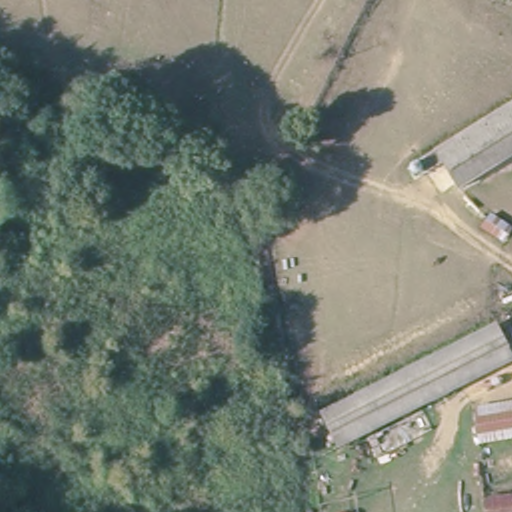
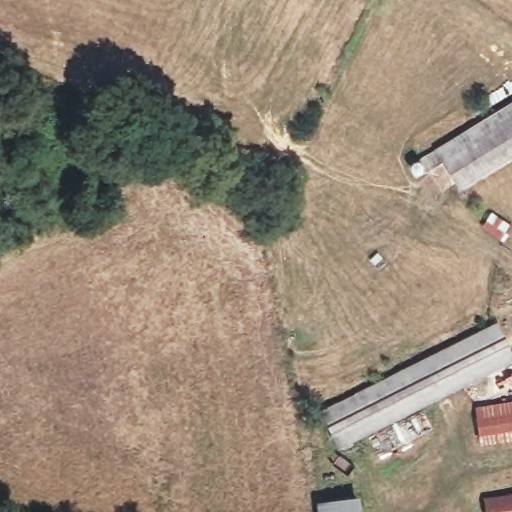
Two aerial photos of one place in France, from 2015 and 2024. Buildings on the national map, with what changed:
unchanged [(512,105),(512,158),(457,187),(437,147),(512,105)]
unchanged [(491,318),(512,350),(340,445),(321,414),(491,318)]
unchanged [(472,403),(512,397),(512,440),(480,445),(472,403)]
unchanged [(512,512),(489,512),(485,497),(512,491),(512,512)]
new [(361,512),(318,512),(316,502),(359,497),(361,512)]

